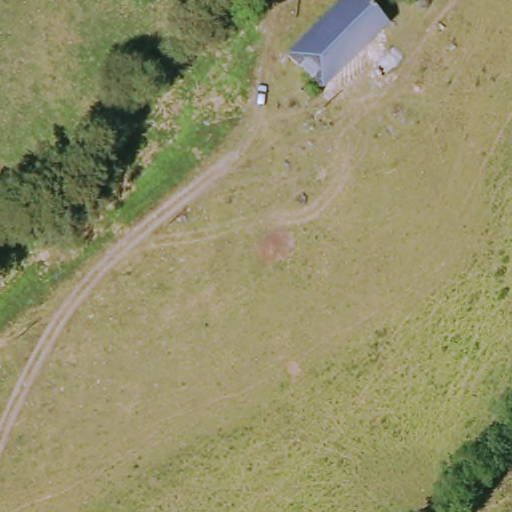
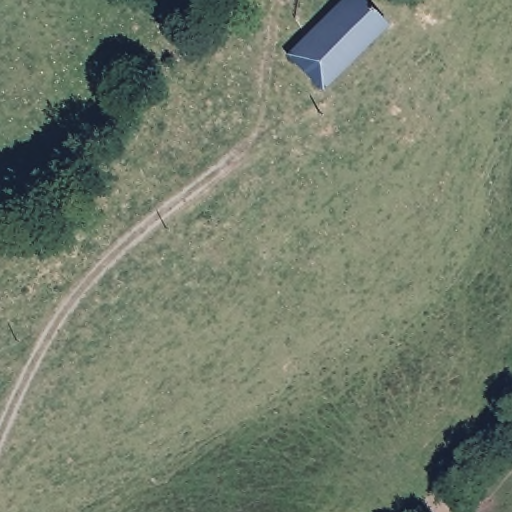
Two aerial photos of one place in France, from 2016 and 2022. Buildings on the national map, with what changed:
unchanged [(320,90),(287,57),(343,0),(361,0),(385,24),(320,90)]

